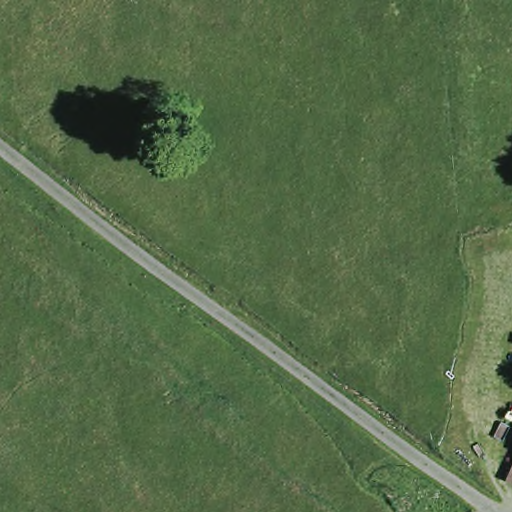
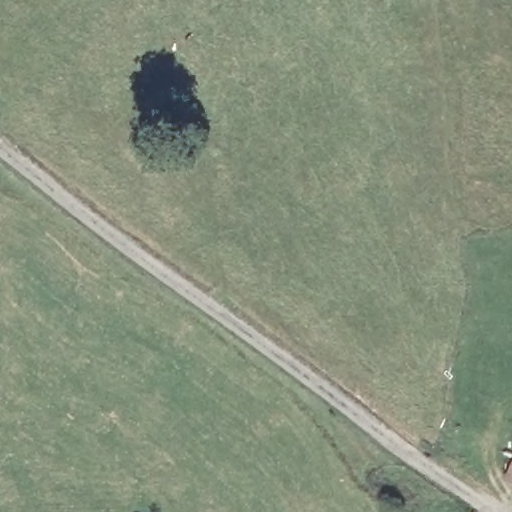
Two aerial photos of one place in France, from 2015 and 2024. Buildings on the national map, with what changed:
unchanged [(512,485),(506,482),(512,445),(512,485)]

